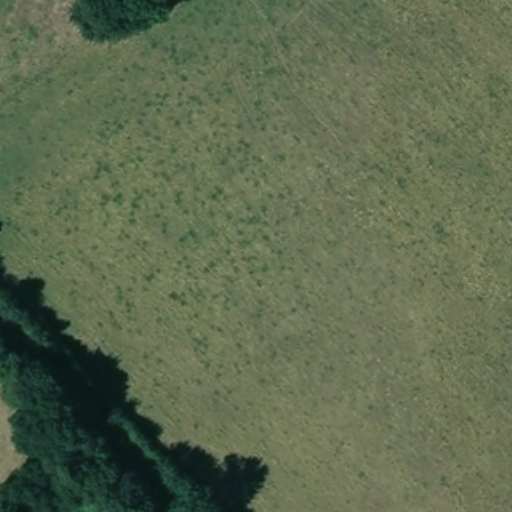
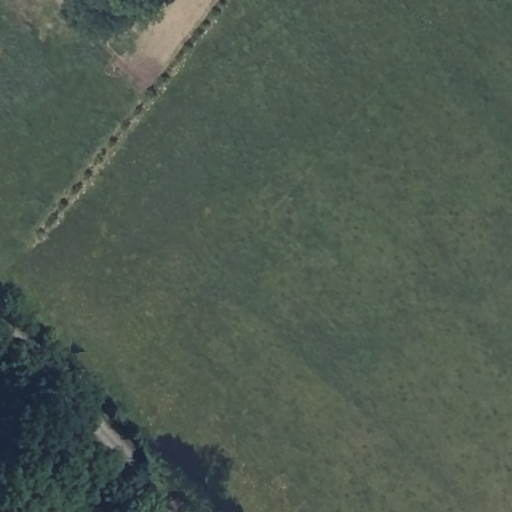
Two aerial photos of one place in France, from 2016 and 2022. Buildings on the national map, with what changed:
[]

